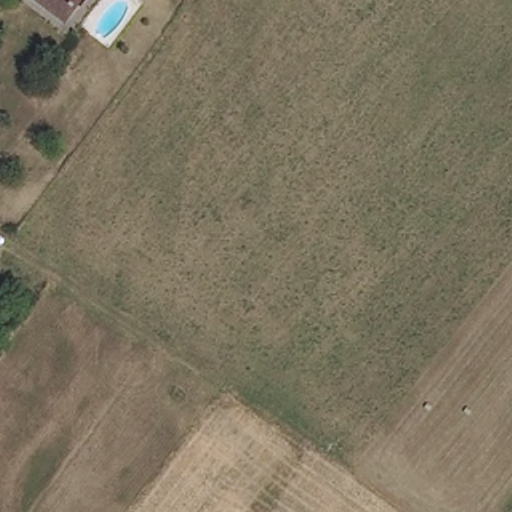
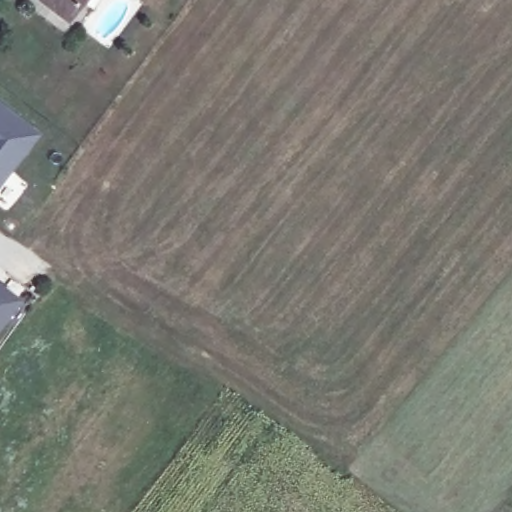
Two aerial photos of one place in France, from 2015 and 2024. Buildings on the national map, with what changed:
unchanged [(73,6),(76,9),(66,22),(38,0),(78,0),(73,6)]
new [(0,188),(0,100),(43,133),(0,188)]
new [(0,326),(0,283),(21,298),(0,326)]

